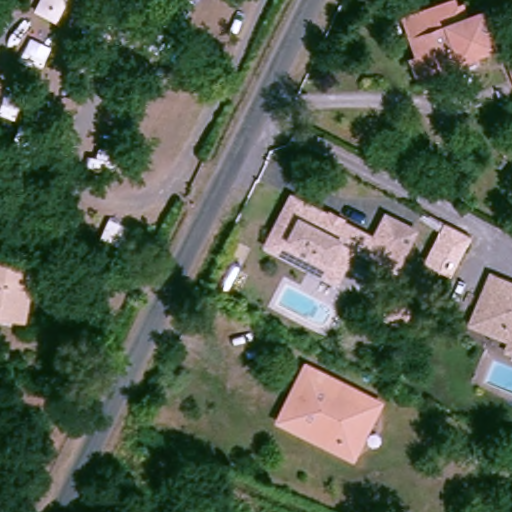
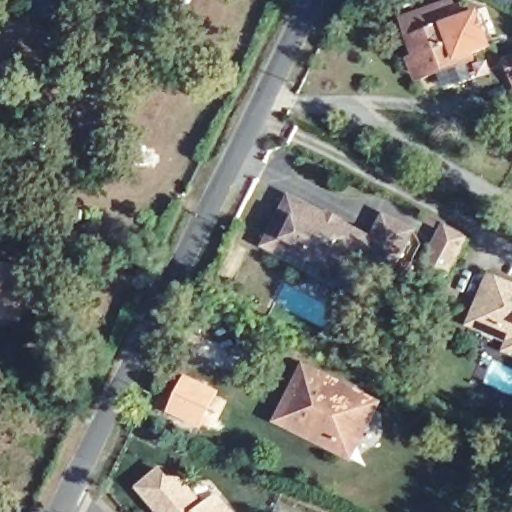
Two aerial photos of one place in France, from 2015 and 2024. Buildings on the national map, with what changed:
unchanged [(436,8),(442,6),(446,17),(462,11),(475,46),(455,54),(457,60),(408,78),(400,56),(407,54),(393,15),(434,1),(436,8)]
unchanged [(510,60),(512,60),(512,67),(510,60)]
unchanged [(301,266),(262,248),(257,245),(281,196),(286,199),(352,231),(351,233),(364,240),(377,214),(405,228),(387,266),(345,245),(343,248),(328,280),(301,266)]
unchanged [(452,278),(423,264),(444,224),(472,238),(452,278)]
unchanged [(0,259),(36,265),(34,282),(26,281),(20,314),(0,310),(0,259)]
unchanged [(503,345),(506,335),(466,318),(487,270),(495,274),(478,314),(512,328),(512,349),(503,345)]
unchanged [(478,314),(495,274),(512,281),(512,328),(478,314)]
unchanged [(374,318),(385,296),(416,310),(404,332),(374,318)]
unchanged [(311,356),(389,395),(355,459),(278,418),(311,356)]
new [(187,373),(220,391),(199,429),(166,411),(187,373)]
new [(161,466),(170,477),(186,478),(206,504),(220,492),(236,512),(157,512),(136,486),(161,466)]

